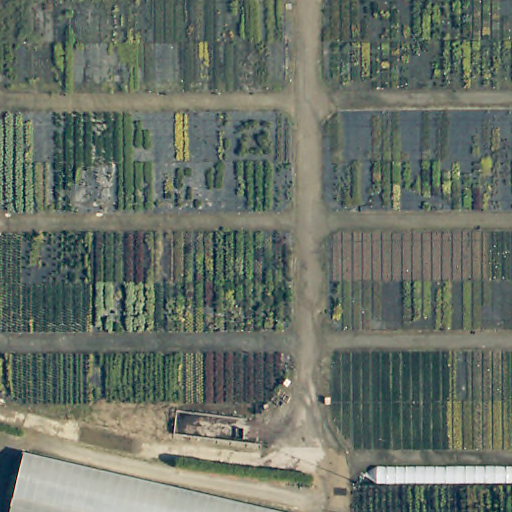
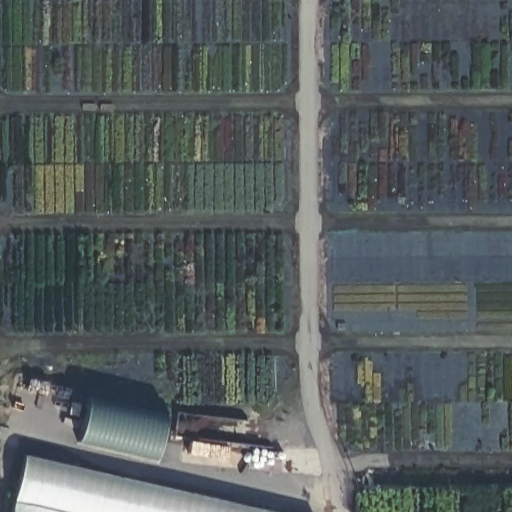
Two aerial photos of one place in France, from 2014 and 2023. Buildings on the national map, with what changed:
new [(157,461),(75,441),(86,392),(169,412),(157,461)]
unchanged [(270,512),(13,512),(27,452),(270,512)]

